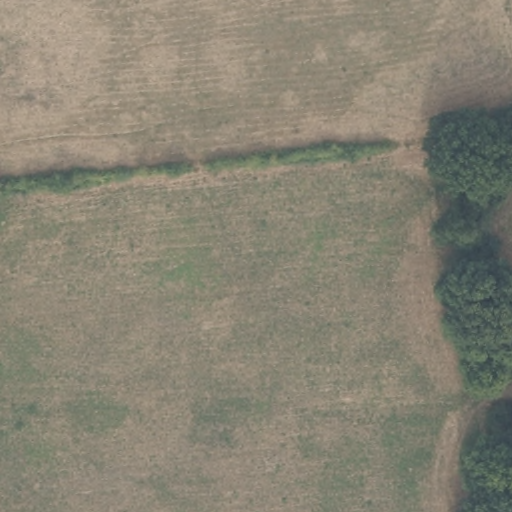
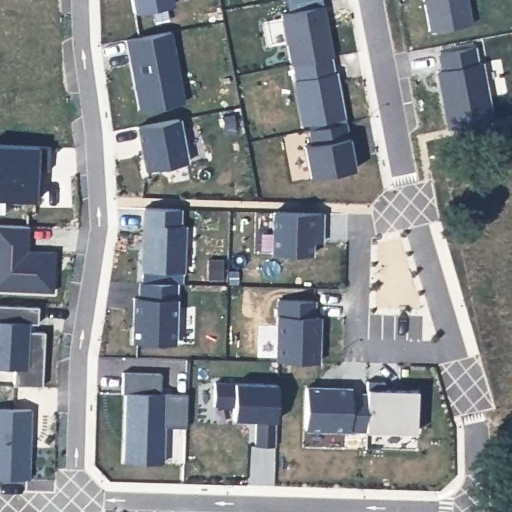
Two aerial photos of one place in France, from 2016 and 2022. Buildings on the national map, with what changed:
new [(172,5),(134,12),(131,0),(171,0),(172,5)]
new [(281,13),(286,11),(284,0),(320,0),(333,56),(329,57),(292,64),(281,13)]
new [(472,23),(430,32),(423,0),(467,0),(472,23)]
new [(170,32),(184,101),(138,111),(123,40),(170,32)]
new [(442,70),(439,54),(473,47),(477,63),(481,63),(492,121),(448,129),(437,71),(442,70)]
new [(329,57),(332,73),(334,72),(342,118),(302,125),(293,80),(296,80),(292,64),(329,57)]
new [(177,119),(186,162),(145,170),(137,126),(177,119)]
new [(311,144),(308,130),(345,123),(354,169),(309,178),(303,146),(311,144)]
new [(50,147),(49,170),(36,169),(34,201),(0,199),(0,144),(50,147)]
new [(143,208),(179,209),(178,225),(183,226),(182,272),(142,271),(143,208)]
new [(311,242),(310,255),(275,254),(276,212),(321,213),(321,230),(321,242),(311,242)]
new [(27,226),(27,251),(54,252),(52,292),(0,289),(0,224),(27,226)]
new [(132,296),(137,296),(138,281),(176,283),(175,343),(131,342),(132,296)]
new [(277,300),(313,301),(313,317),(318,317),(317,363),(276,362),(277,300)]
new [(37,306),(36,323),(27,323),(26,331),(42,331),(40,386),(12,385),(12,368),(0,367),(0,304),(37,306)]
new [(124,392),(121,392),(122,371),(159,372),(159,391),(185,393),(185,426),(162,425),(162,463),(121,461),(124,392)]
new [(277,382),(275,446),(252,445),(255,421),(232,420),(231,407),(214,405),(214,380),(277,382)]
new [(366,395),(367,381),(383,382),(383,390),(416,391),(415,432),(365,431),(366,395)]
new [(305,387),(350,389),(350,394),(366,395),(365,431),(304,429),(305,387)]
new [(31,409),(29,479),(0,478),(0,408),(31,409)]

